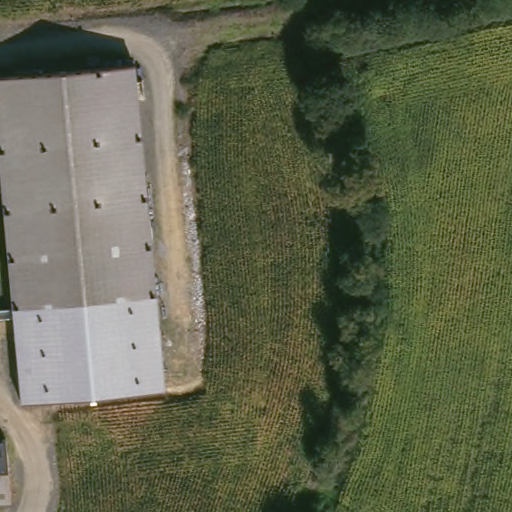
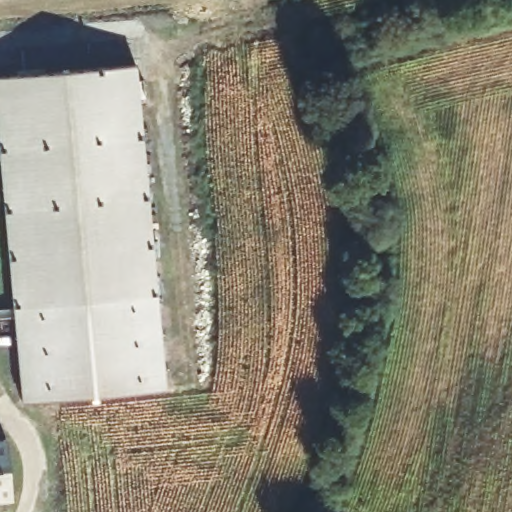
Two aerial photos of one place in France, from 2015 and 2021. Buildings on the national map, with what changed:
unchanged [(135,68),(156,294),(14,306),(0,132),(0,80),(135,68)]
unchanged [(165,390),(21,402),(14,306),(146,295),(156,294),(165,390)]
unchanged [(3,506),(0,506),(0,476),(3,506)]

